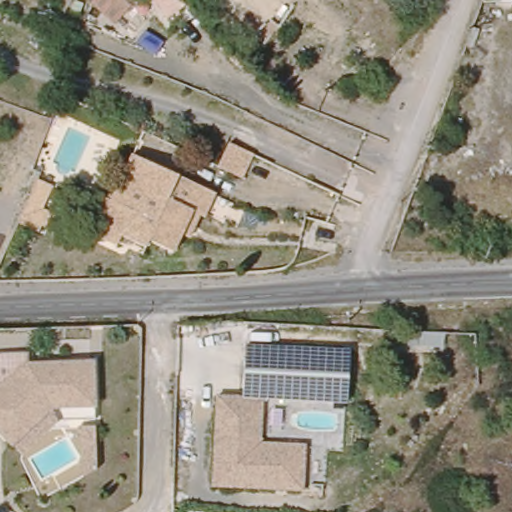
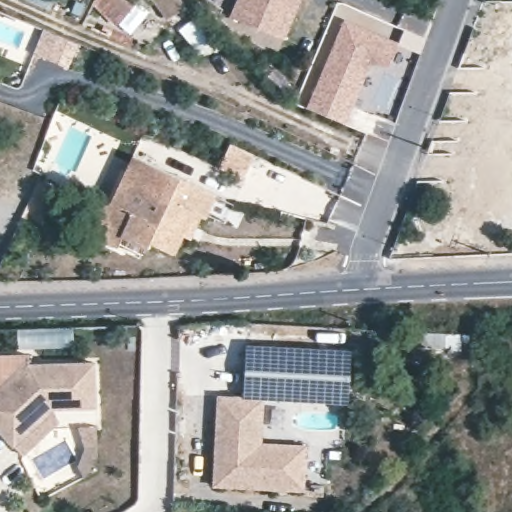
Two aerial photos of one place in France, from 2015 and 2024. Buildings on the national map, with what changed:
unchanged [(169,0),(159,9),(153,2),(139,14),(132,7),(114,26),(91,3),(94,0),(169,0)]
new [(231,17),(237,0),(301,0),(284,40),(231,17)]
demolished [(271,27),(258,41),(238,25),(259,0),(293,0),(291,1),(298,6),(277,33),(271,27)]
new [(344,23),(396,46),(387,66),(369,59),(343,124),(308,110),(344,23)]
new [(79,41),(68,68),(32,54),(43,27),(79,41)]
unchanged [(241,179),(217,167),(228,144),(251,155),(241,179)]
unchanged [(189,229),(180,249),(155,236),(152,243),(127,231),(123,242),(95,230),(113,194),(118,195),(138,150),(221,189),(210,212),(204,210),(194,231),(189,229)]
unchanged [(243,400),(246,347),(349,353),(346,406),(264,401),(243,400)]
unchanged [(53,406),(12,444),(0,431),(0,355),(29,354),(29,364),(93,362),(94,406),(53,406)]
unchanged [(304,495),(214,490),(219,399),(243,400),(264,401),(261,447),(306,450),(304,495)]
unchanged [(80,467),(87,448),(82,428),(99,426),(100,471),(86,478),(80,467)]

